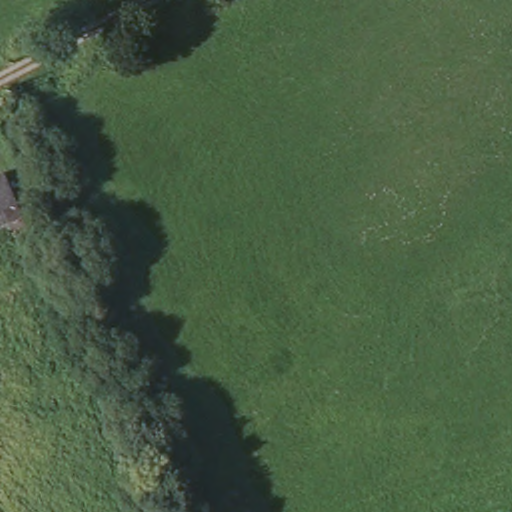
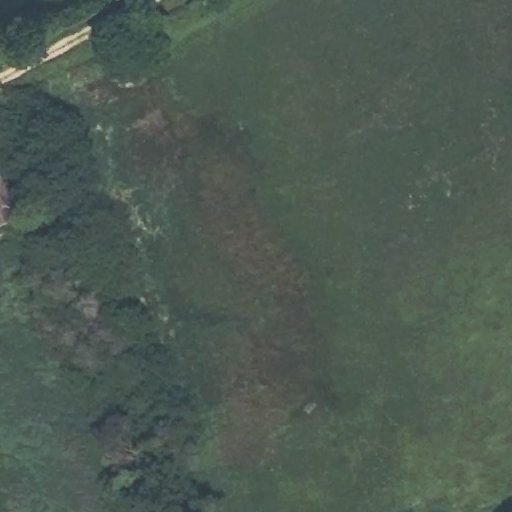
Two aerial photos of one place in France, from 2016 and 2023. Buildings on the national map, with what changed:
unchanged [(16,219),(0,227),(0,172),(5,169),(19,199),(27,215),(16,219)]

